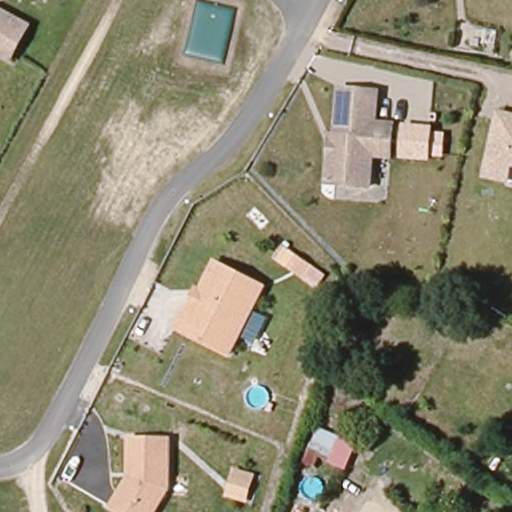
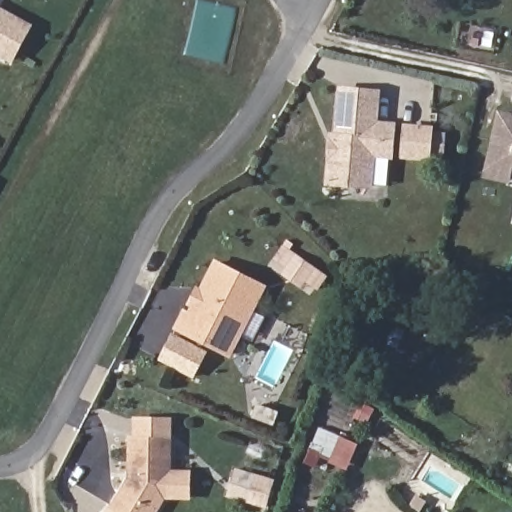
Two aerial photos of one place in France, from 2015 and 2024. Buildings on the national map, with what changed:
unchanged [(0,12),(29,20),(19,56),(0,51),(0,12)]
unchanged [(327,183),(332,136),(338,136),(342,89),(380,94),(375,125),(393,128),(391,158),(372,156),(370,188),(327,183)]
unchanged [(511,187),(490,183),(505,118),(512,120),(512,182),(511,187)]
unchanged [(179,311),(185,315),(214,264),(265,291),(229,356),(170,327),(179,311)]
new [(194,378),(157,360),(171,333),(207,352),(194,378)]
unchanged [(321,459),(315,472),(300,464),(319,423),(360,444),(348,472),(321,459)]
unchanged [(178,440),(175,490),(161,512),(125,512),(118,508),(138,478),(140,438),(178,440)]

